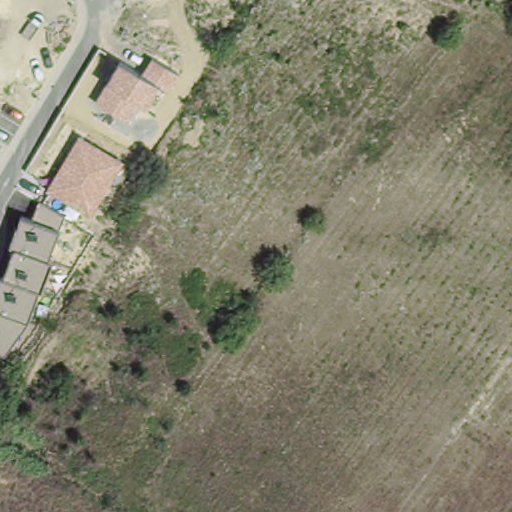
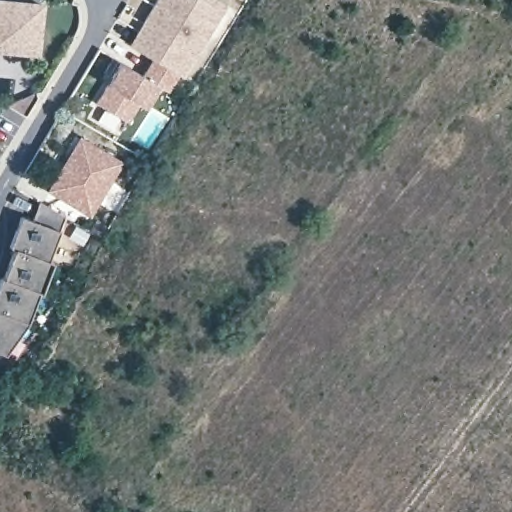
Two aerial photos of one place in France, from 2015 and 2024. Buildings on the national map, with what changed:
new [(40,56),(0,52),(0,0),(30,0),(45,1),(40,56)]
new [(157,0),(219,0),(228,6),(186,79),(180,75),(152,59),(131,45),(157,0)]
unchanged [(171,92),(159,86),(146,108),(141,104),(131,122),(97,101),(107,84),(119,62),(141,75),(152,59),(180,75),(171,92)]
unchanged [(92,217),(46,192),(79,136),(122,162),(92,217)]
unchanged [(14,250),(10,250),(21,216),(32,220),(37,204),(64,217),(60,231),(49,262),(52,263),(40,292),(27,324),(4,356),(0,367),(0,277),(4,279),(14,250)]

